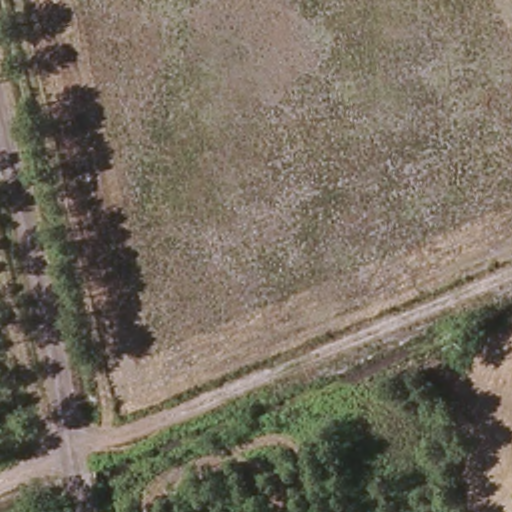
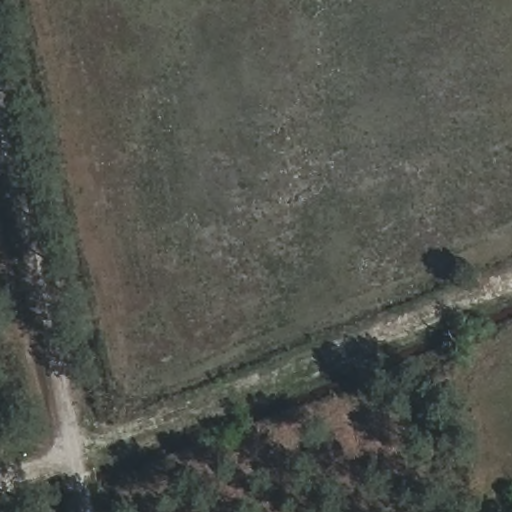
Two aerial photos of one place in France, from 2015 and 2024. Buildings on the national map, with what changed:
[]

